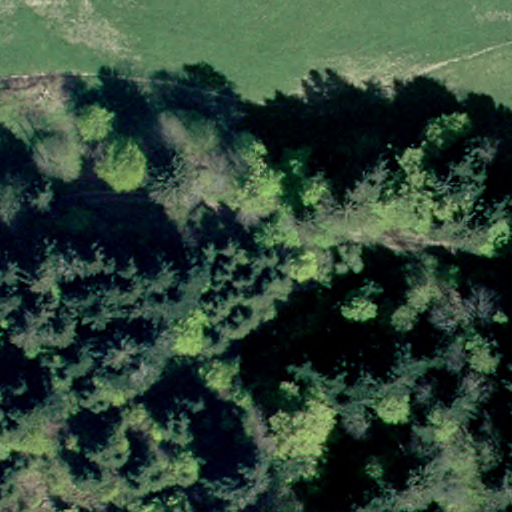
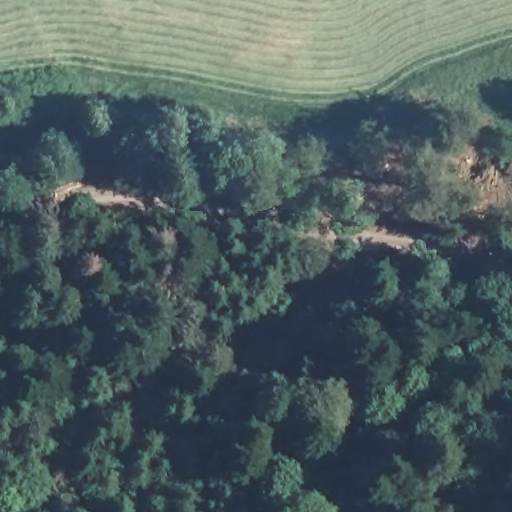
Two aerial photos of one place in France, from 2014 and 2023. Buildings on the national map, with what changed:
[]

